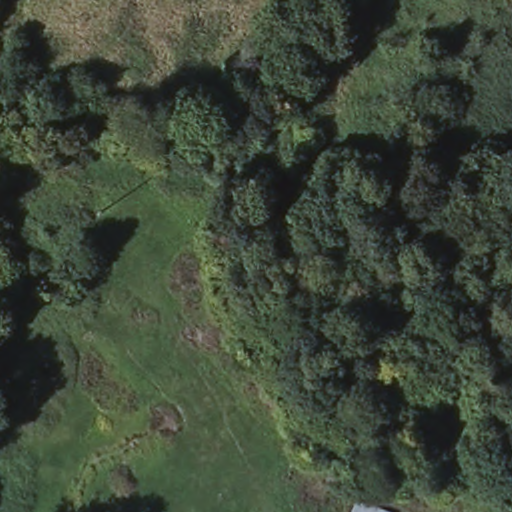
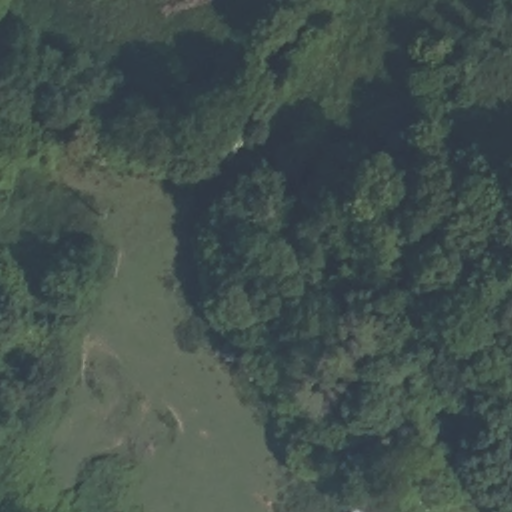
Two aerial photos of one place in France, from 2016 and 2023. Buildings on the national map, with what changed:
unchanged [(386,512),(365,512),(367,505),(386,512)]

